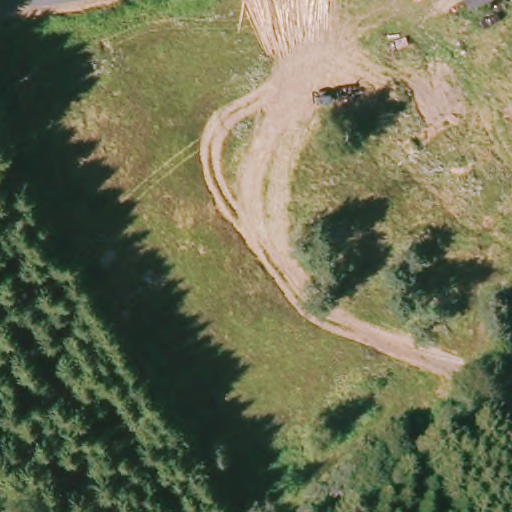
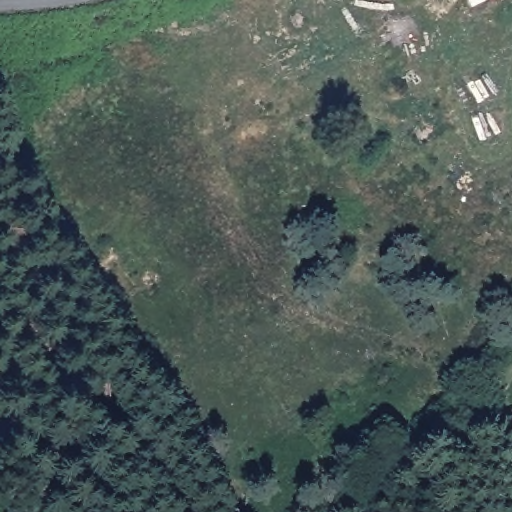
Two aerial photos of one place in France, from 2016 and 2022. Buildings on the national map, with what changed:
unchanged [(459,0),(487,0),(465,11),(459,0)]

